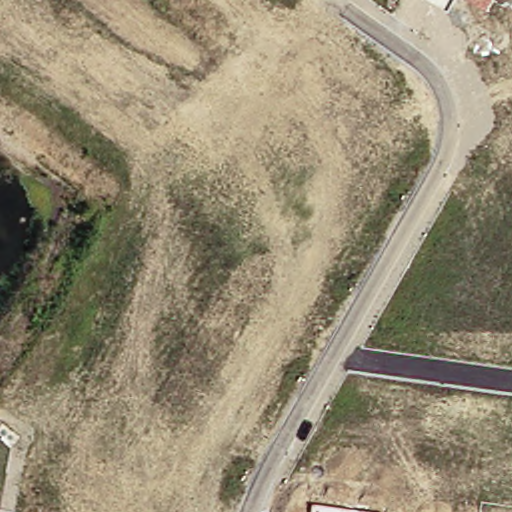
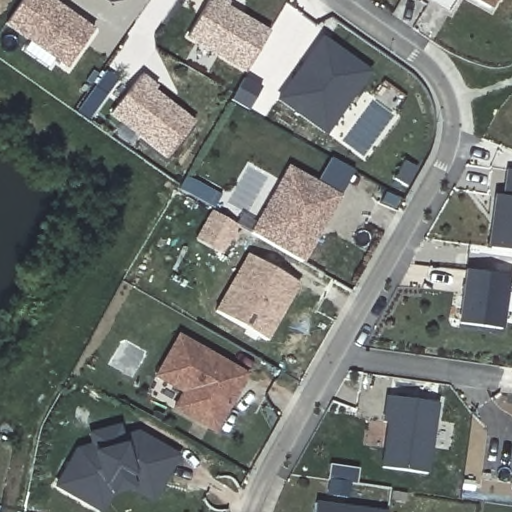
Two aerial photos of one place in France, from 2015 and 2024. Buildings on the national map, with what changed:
new [(54,0),(98,31),(72,67),(11,25),(28,0),(54,0)]
new [(224,0),(232,5),(230,9),(271,34),(272,34),(249,72),(190,38),(213,0),(224,0)]
unchanged [(479,0),(502,0),(496,10),(479,0)]
new [(318,125),(282,99),(326,37),(373,72),(352,101),(330,133),(318,125)]
new [(145,75),(161,88),(158,92),(199,124),(171,158),(115,114),(145,75)]
new [(298,170),(339,194),(321,225),(320,224),(317,229),(318,230),(301,258),(273,243),(260,236),(281,201),(298,170)]
new [(502,197),(505,172),(512,172),(512,253),(486,250),(493,197),(502,197)]
new [(226,197),(252,212),(244,226),(243,225),(227,252),(202,239),(218,211),(226,197)]
new [(280,322),(270,341),(220,312),(252,256),(291,278),(302,283),(280,322)]
new [(457,326),(465,270),(509,277),(503,332),(457,326)]
new [(215,437),(170,411),(179,395),(152,380),(177,335),(248,375),(215,437)]
new [(392,425),(387,424),(391,398),(440,405),(429,476),(386,469),(392,425)]
new [(97,447),(94,435),(121,427),(124,438),(141,434),(180,457),(168,480),(157,473),(151,485),(135,476),(107,483),(94,506),(60,486),(81,451),(97,447)]
new [(107,483),(135,476),(151,485),(157,473),(168,480),(155,502),(134,490),(115,495),(105,512),(104,512),(94,506),(107,483)]
new [(512,473),(512,487),(510,487),(512,473)]
unchanged [(386,512),(312,512),(313,502),(386,512)]

